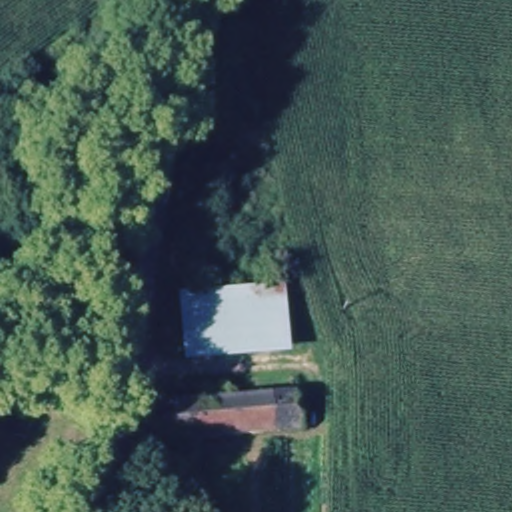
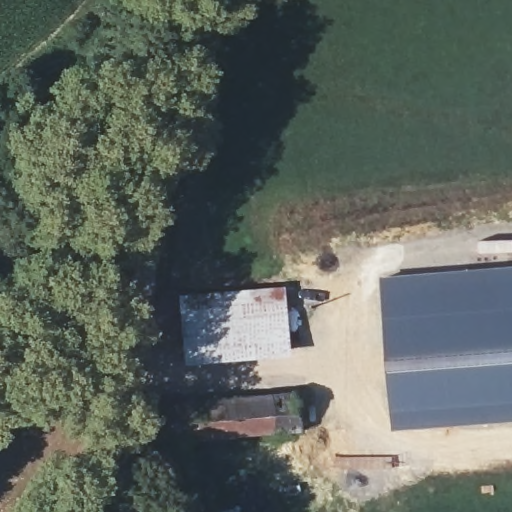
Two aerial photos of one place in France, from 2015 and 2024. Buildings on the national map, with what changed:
new [(512,264),(512,420),(395,429),(382,274),(512,264)]
unchanged [(181,302),(279,297),(280,320),(273,320),(182,327),(181,302)]
unchanged [(184,357),(182,327),(273,320),(280,320),(282,349),(276,349),(184,357)]
unchanged [(171,407),(294,399),(299,438),(294,438),(176,446),(165,446),(162,408),(171,407)]

